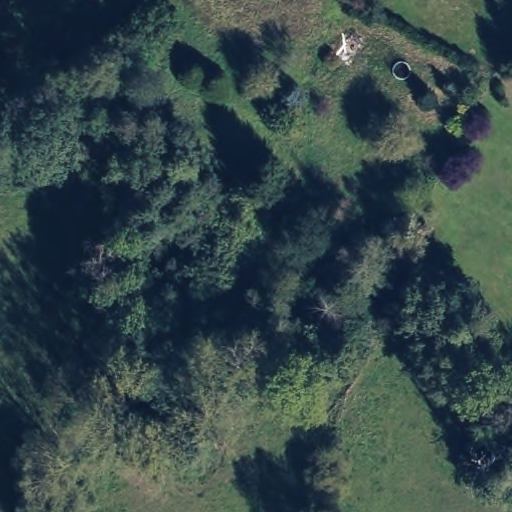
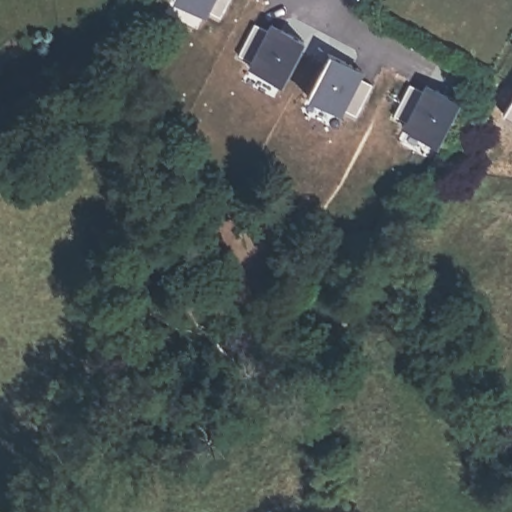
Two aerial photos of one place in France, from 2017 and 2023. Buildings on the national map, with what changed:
new [(178,0),(228,0),(220,17),(207,10),(205,15),(178,0)]
new [(281,82),(248,65),(251,60),(238,54),(255,23),(267,29),(272,22),(304,38),(281,82)]
new [(309,96),(330,52),(364,70),(360,78),(371,84),(355,116),(344,109),(341,113),(309,96)]
new [(404,126),(407,120),(395,115),(411,85),(422,91),(427,83),(461,100),(437,143),(404,126)]
new [(512,100),(512,114),(506,110),(512,100)]

